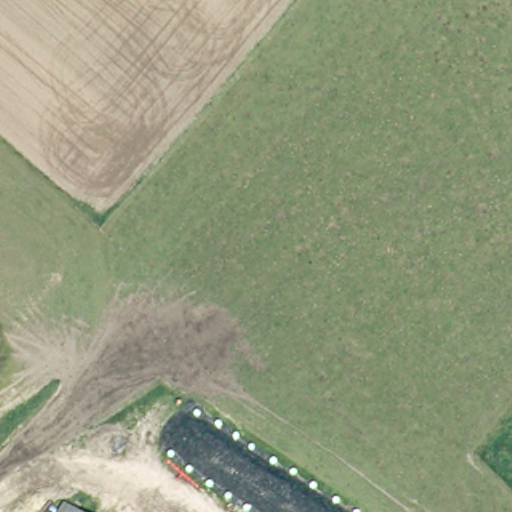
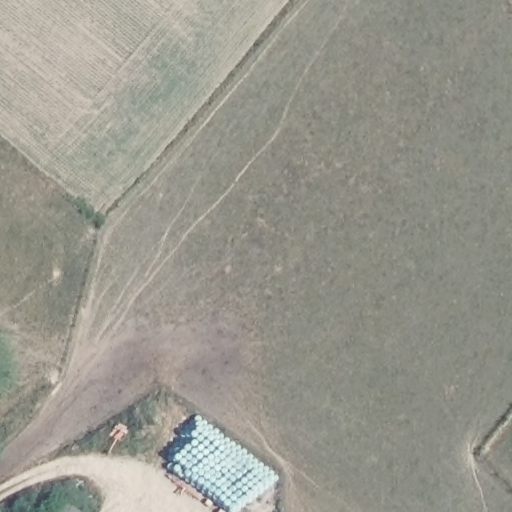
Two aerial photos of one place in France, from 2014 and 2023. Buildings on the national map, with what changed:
unchanged [(63,506),(75,512),(59,512),(63,506)]

